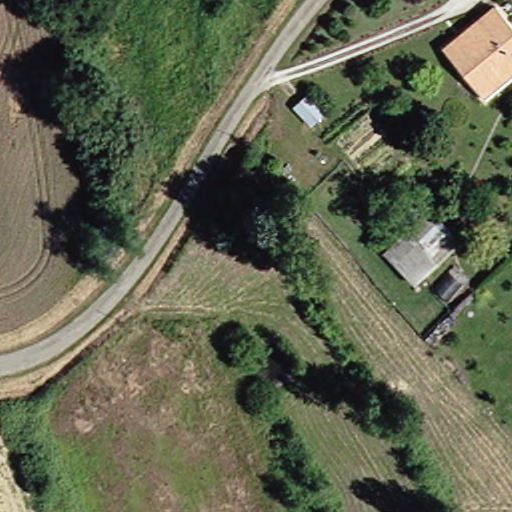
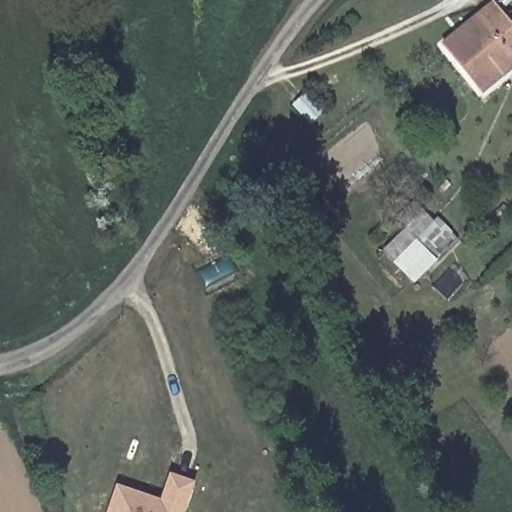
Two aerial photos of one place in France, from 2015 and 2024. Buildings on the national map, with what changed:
unchanged [(451,41),(503,1),(512,12),(512,80),(494,94),(451,41)]
unchanged [(391,249),(410,234),(398,219),(421,202),(440,225),(445,221),(458,237),(436,256),(443,262),(422,283),(391,249)]
new [(122,487),(168,505),(178,479),(199,487),(189,512),(112,512),(122,487)]

